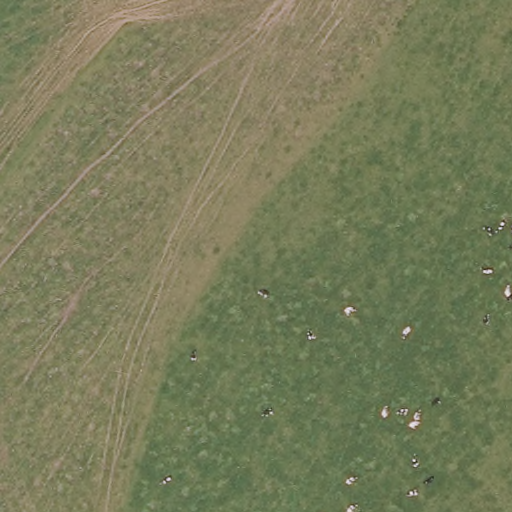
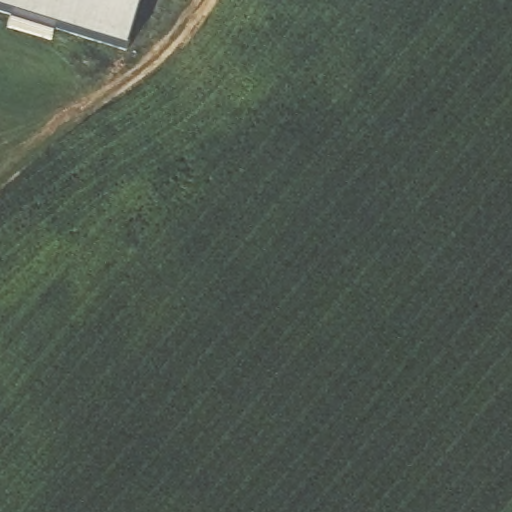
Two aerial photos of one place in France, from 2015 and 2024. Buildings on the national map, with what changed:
new [(131,49),(0,9),(0,0),(143,0),(131,49)]

